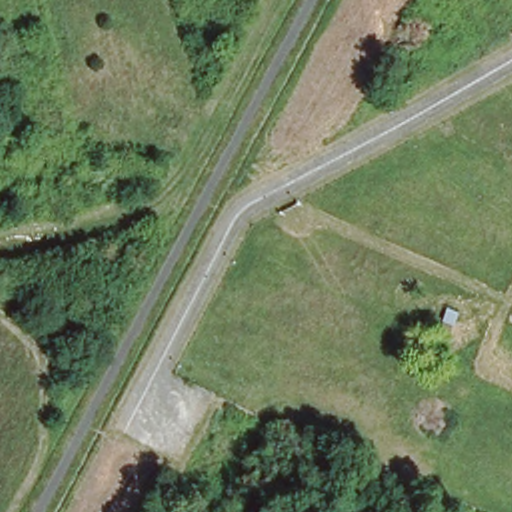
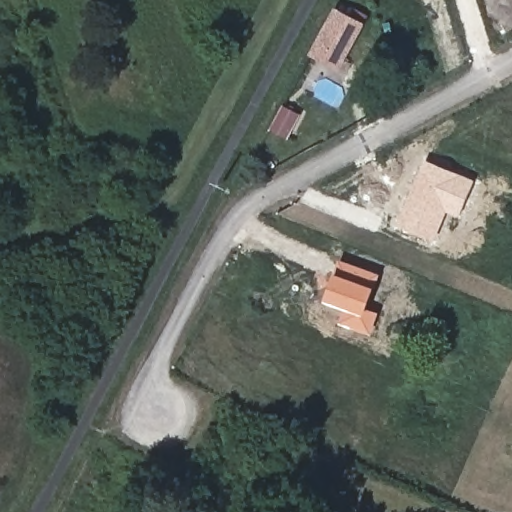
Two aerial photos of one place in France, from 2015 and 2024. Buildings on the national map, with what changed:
new [(340,71),(310,54),(335,6),(367,22),(340,71)]
new [(434,242),(398,226),(425,161),(474,182),(459,217),(447,212),(434,242)]
new [(346,308),(325,301),(335,273),(339,260),(379,274),(374,288),(368,309),(379,313),(372,334),(340,323),(346,308)]

